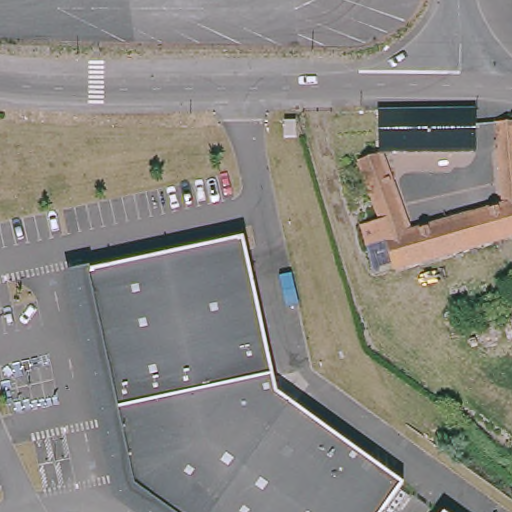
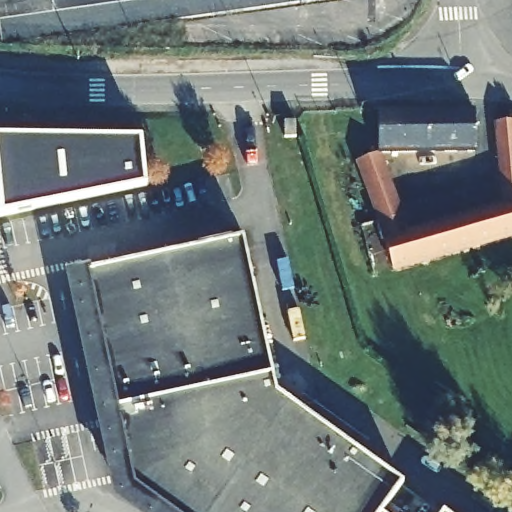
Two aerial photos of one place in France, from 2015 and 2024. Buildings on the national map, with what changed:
unchanged [(378,108),(476,109),(477,150),(385,152),(380,153),(378,108)]
unchanged [(357,161),(385,152),(411,227),(500,202),(492,121),(512,120),(512,238),(395,272),(392,268),(372,273),(360,226),(377,221),(357,161)]
new [(0,216),(0,210),(1,209),(0,200),(0,137),(142,137),(147,185),(0,216)]
unchanged [(112,497),(66,275),(243,238),(274,390),(401,484),(381,512),(132,512),(112,497)]

